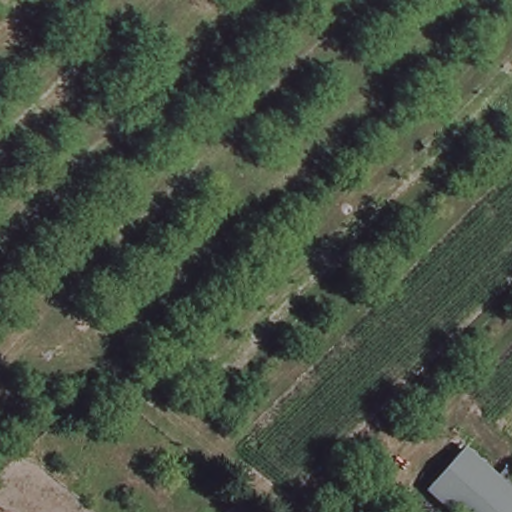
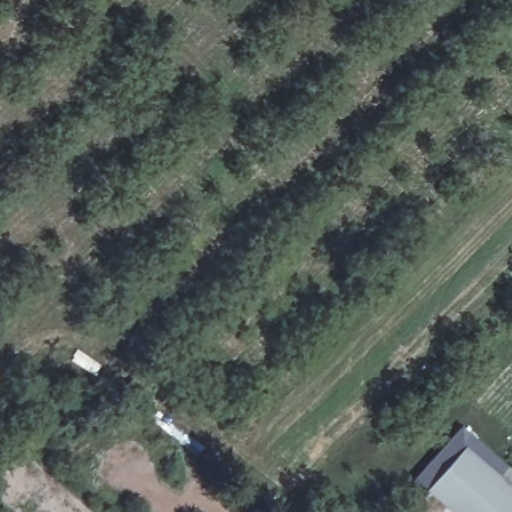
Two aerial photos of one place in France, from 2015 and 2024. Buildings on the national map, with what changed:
unchanged [(507,471),(512,476),(512,512),(452,512),(425,487),(459,450),(496,484),(507,471)]

